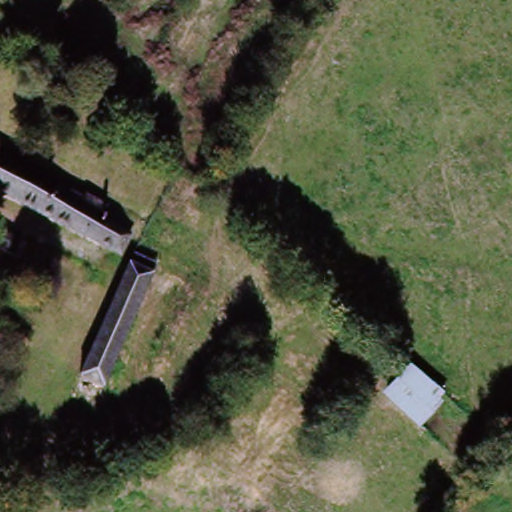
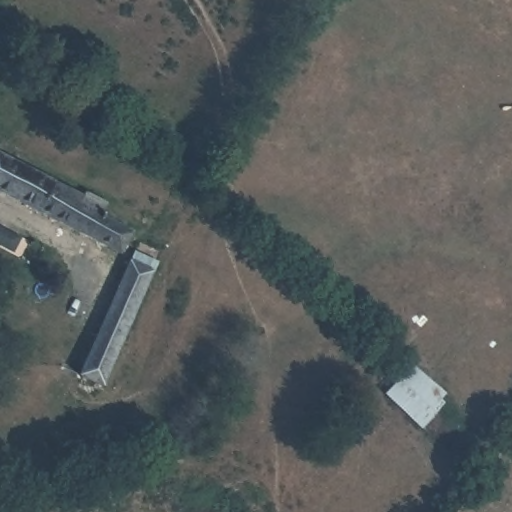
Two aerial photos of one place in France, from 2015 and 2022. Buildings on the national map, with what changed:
unchanged [(112,261),(0,194),(0,163),(74,203),(78,195),(103,210),(100,216),(129,232),(112,261)]
unchanged [(80,364),(130,265),(152,276),(101,374),(80,364)]
unchanged [(456,410),(425,441),(379,399),(411,366),(456,410)]

